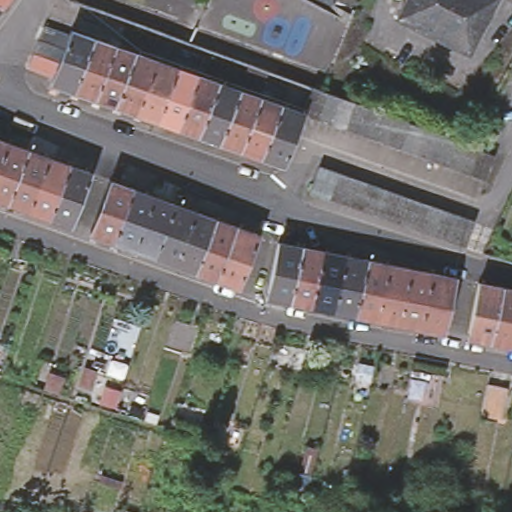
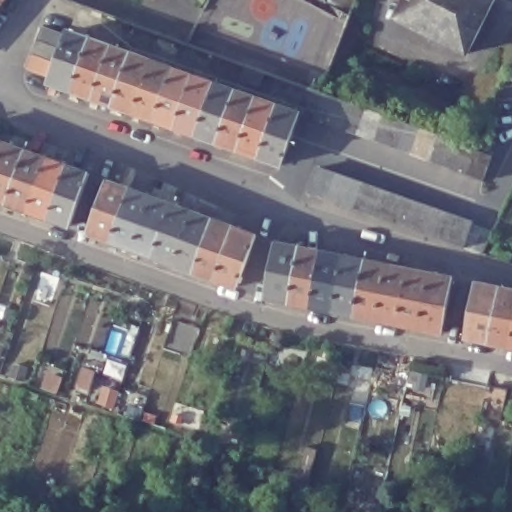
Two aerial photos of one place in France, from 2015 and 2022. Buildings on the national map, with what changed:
unchanged [(468,51),(397,16),(405,0),(493,0),(468,51)]
unchanged [(35,66),(40,53),(46,39),(52,26),(74,34),(69,47),(64,62),(59,75),(35,66)]
unchanged [(79,88),(65,83),(59,81),(57,80),(59,75),(64,62),(69,47),(74,34),(76,30),(98,37),(79,88)]
unchanged [(101,96),(88,91),(81,89),(79,88),(98,37),(119,45),(101,96)]
unchanged [(121,103),(108,98),(103,96),(101,96),(119,45),(139,52),(121,103)]
unchanged [(143,111),(128,106),(123,104),(121,103),(139,52),(161,59),(143,111)]
unchanged [(163,117),(149,112),(144,111),(143,111),(161,59),(181,66),(163,117)]
unchanged [(184,125),(172,121),(166,118),(163,117),(181,66),(202,73),(184,125)]
unchanged [(206,132),(191,128),(186,126),(184,125),(202,73),(224,81),(206,132)]
unchanged [(226,140),(213,135),(207,133),(206,132),(224,81),(243,87),(226,140)]
unchanged [(490,179),(475,173),(461,167),(447,163),(433,157),(419,152),(404,147),(391,142),(376,137),(364,132),(351,127),(336,122),(322,117),(308,112),(309,110),(318,86),(329,90),(331,91),(346,96),(360,101),(374,107),(386,111),(401,116),(414,121),(429,126),(442,131),(456,136),(469,142),(474,143),(484,147),(494,151),(500,152),(490,179)]
unchanged [(247,147),(233,142),(227,140),(226,140),(243,87),(265,95),(247,147)]
unchanged [(267,154),(256,150),(250,148),(247,147),(265,95),(286,102),(267,154)]
unchanged [(289,162),(274,157),(269,155),(267,154),(286,102),(309,110),(308,112),(289,162)]
unchanged [(485,124),(503,132),(495,146),(478,137),(485,124)]
unchanged [(73,225),(55,219),(50,217),(48,217),(34,212),(29,210),(28,209),(15,205),(9,202),(8,202),(0,199),(0,140),(8,143),(27,150),(47,157),(68,165),(92,174),(73,225)]
unchanged [(460,240),(446,235),(432,230),(419,226),(404,221),(390,216),(376,211),(363,206),(349,202),(335,197),(321,192),(306,187),(314,161),(330,166),(344,171),(357,176),(371,180),(385,185),(399,190),(413,195),(427,200),(440,204),(454,209),(469,214),(460,240)]
unchanged [(234,283),(221,279),(216,277),(214,277),(201,272),(196,270),(193,269),(181,265),(175,262),(172,261),(160,257),(154,255),(151,254),(138,249),(133,247),(131,246),(116,241),(111,239),(109,238),(95,232),(88,231),(87,230),(106,179),(128,187),(149,195),(170,202),(191,210),(211,217),(232,225),(253,232),(234,283)]
unchanged [(297,246),(319,250),(341,254),(361,258),(383,262),(403,266),(424,271),(449,276),(438,329),(414,325),(392,320),(371,316),(351,312),(329,308),(308,305),(286,300),(264,295),(274,241),(297,246)]
unchanged [(498,285),(512,288),(512,344),(508,343),(488,339),(464,334),(476,281),(498,285)]
unchanged [(79,387),(86,368),(98,373),(91,391),(79,387)]
unchanged [(45,392),(51,377),(63,382),(59,396),(45,392)]
unchanged [(489,391),(507,395),(506,400),(501,424),(482,421),(487,397),(489,391)]

